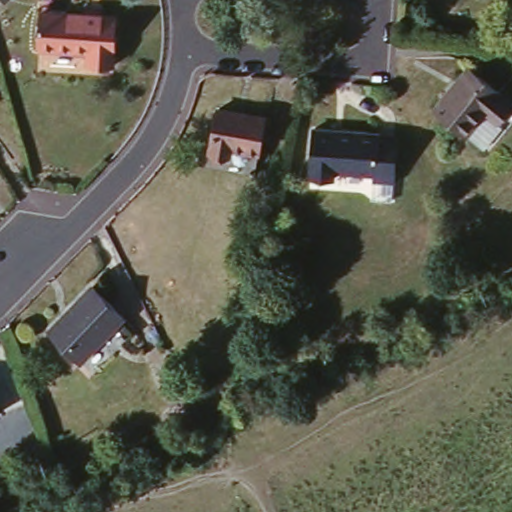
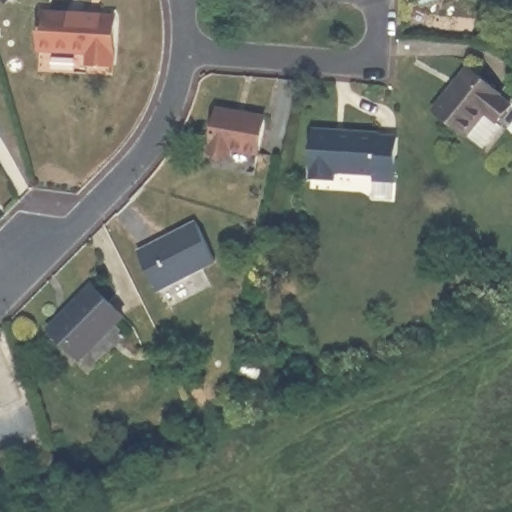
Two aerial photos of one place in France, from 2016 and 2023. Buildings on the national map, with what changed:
unchanged [(78,6),(97,3),(98,10),(111,9),(116,58),(91,61),(90,49),(45,54),(41,17),(80,13),(78,6)]
unchanged [(473,67),(505,97),(500,100),(512,108),(512,112),(493,130),(481,120),(460,141),(431,112),(473,67)]
unchanged [(263,122),(256,154),(232,150),(229,157),(208,151),(216,110),(263,122)]
unchanged [(382,179),(379,172),(342,169),(337,175),(317,170),(320,124),(400,131),(397,164),(396,181),(382,179)]
new [(202,218),(222,257),(164,287),(144,249),(202,218)]
unchanged [(98,282),(129,313),(85,358),(56,327),(98,282)]

